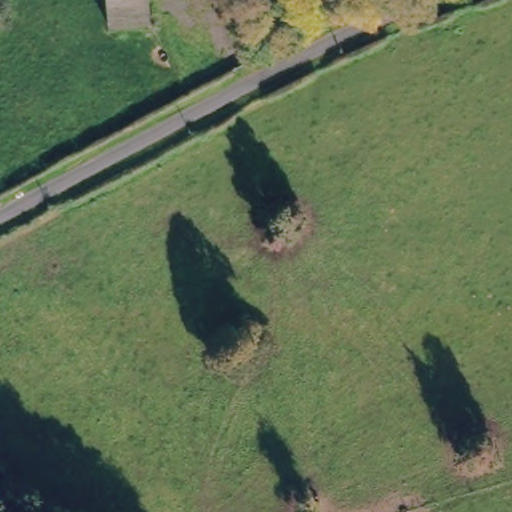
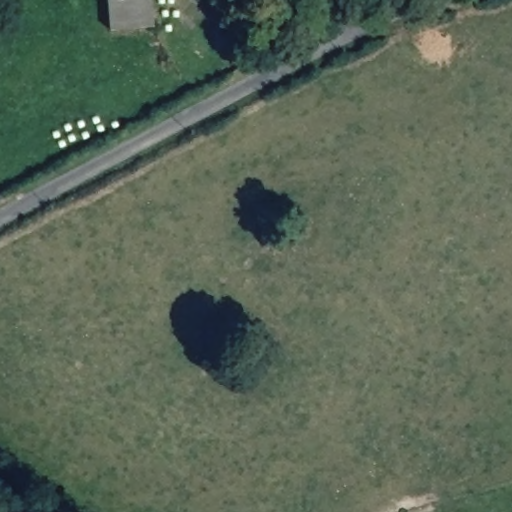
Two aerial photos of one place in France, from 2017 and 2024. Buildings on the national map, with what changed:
unchanged [(153,0),(155,33),(108,32),(108,0),(153,0)]

